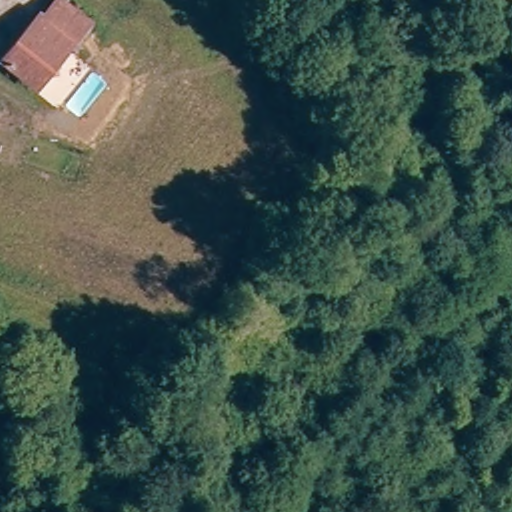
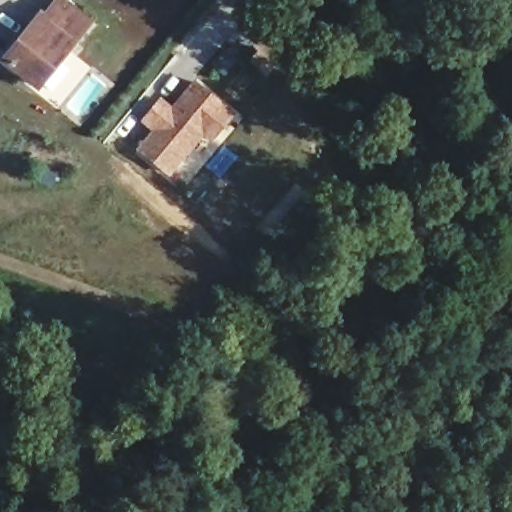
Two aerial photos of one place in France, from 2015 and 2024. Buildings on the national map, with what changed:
unchanged [(10,57),(53,15),(65,5),(91,34),(80,45),(36,85),(10,57)]
new [(173,107),(193,81),(236,114),(211,142),(204,137),(169,176),(136,150),(152,131),(141,122),(161,97),(173,107)]

